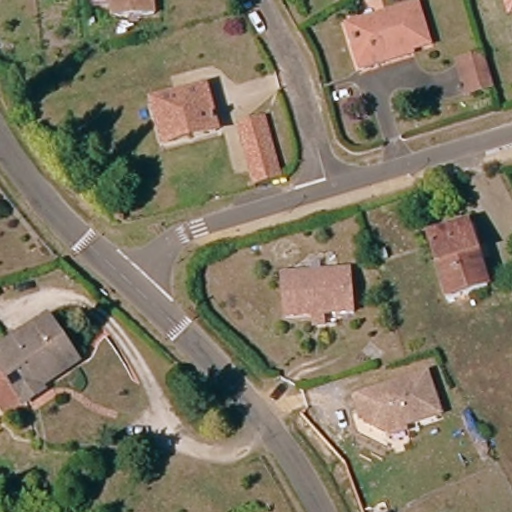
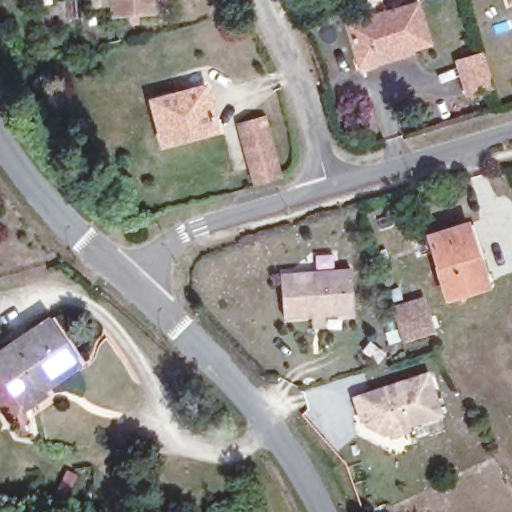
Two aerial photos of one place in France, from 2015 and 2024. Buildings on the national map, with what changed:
unchanged [(112,0),(151,0),(152,12),(113,16),(112,0)]
unchanged [(512,0),(512,2),(509,2),(508,0),(512,0)]
unchanged [(421,5),(432,42),(382,57),(383,62),(366,67),(354,26),(421,5)]
unchanged [(467,94),(458,62),(482,55),(492,87),(467,94)]
unchanged [(203,87),(215,131),(163,144),(152,100),(203,87)]
unchanged [(263,118),(278,175),(253,181),(239,125),(263,118)]
unchanged [(447,299),(428,236),(467,225),(486,287),(447,299)]
unchanged [(319,324),(318,313),(289,316),(286,273),(357,267),(360,310),(329,312),(330,323),(319,324)]
new [(402,342),(392,305),(425,296),(436,331),(402,342)]
unchanged [(86,356),(51,380),(55,385),(35,399),(42,423),(34,426),(25,406),(17,412),(0,386),(0,379),(8,374),(2,366),(9,361),(2,350),(57,312),(86,356)]
unchanged [(433,375),(447,417),(388,436),(372,427),(368,414),(364,415),(359,398),(433,375)]

